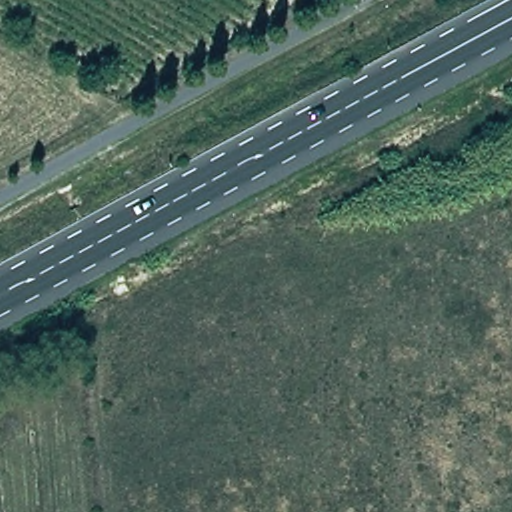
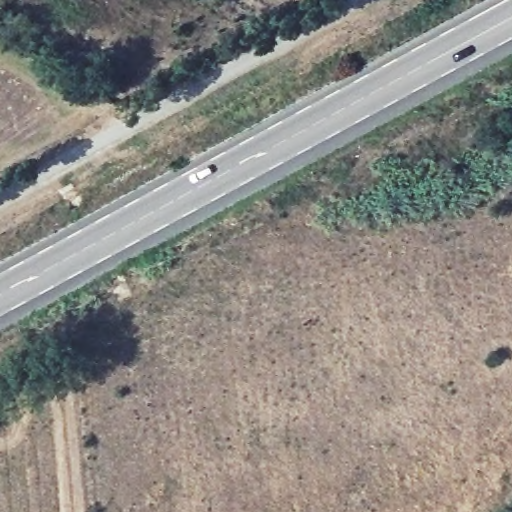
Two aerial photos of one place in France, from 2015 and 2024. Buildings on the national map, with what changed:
[]

